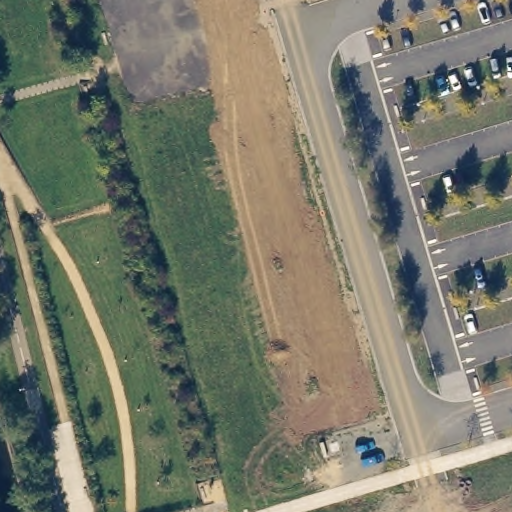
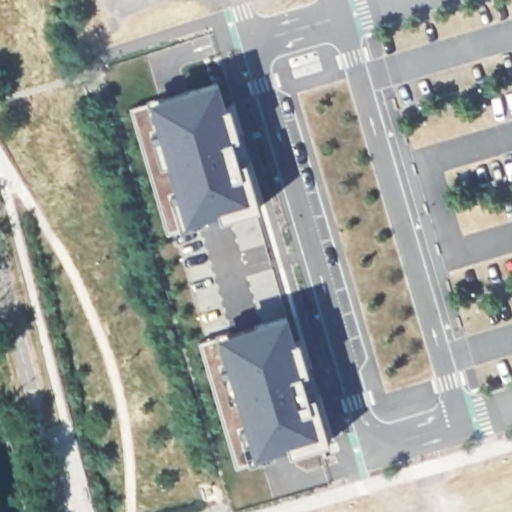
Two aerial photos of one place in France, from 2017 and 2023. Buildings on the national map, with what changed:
new [(261,205),(221,217),(169,234),(131,108),(152,102),(151,98),(218,79),(226,104),(231,102),(248,159),(261,205)]
new [(292,452),(237,468),(199,343),(221,337),(220,334),(290,315),(297,340),(302,338),(331,441),(292,452)]

